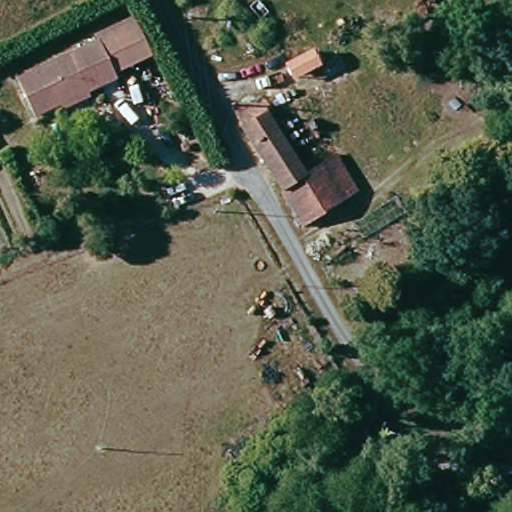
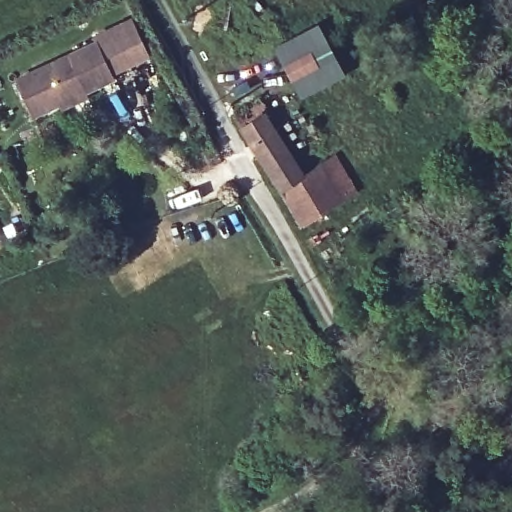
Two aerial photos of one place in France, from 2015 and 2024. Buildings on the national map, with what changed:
unchanged [(51,111),(34,74),(111,37),(109,31),(145,15),(160,50),(124,66),(126,73),(104,84),(107,91),(79,106),(76,98),(51,111)]
new [(319,21),(348,77),(300,101),(269,46),(319,21)]
unchanged [(314,225),(251,126),(245,111),(272,97),(282,111),(319,170),(349,151),(370,191),(314,225)]

